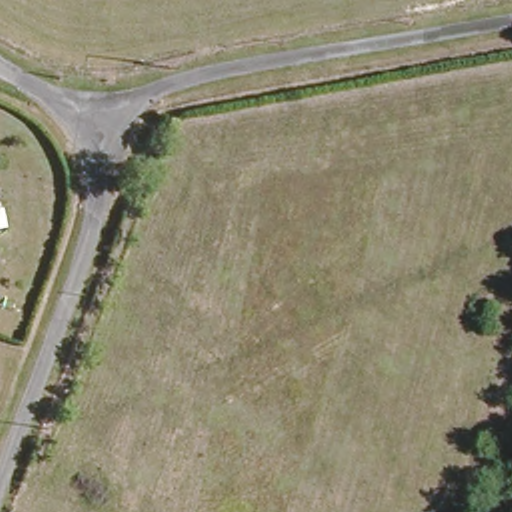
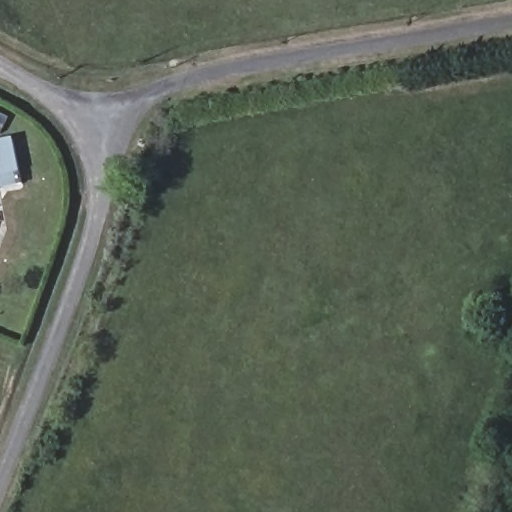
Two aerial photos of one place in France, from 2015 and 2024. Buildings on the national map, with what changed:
new [(23,185),(1,189),(0,183),(0,141),(13,138),(23,185)]

